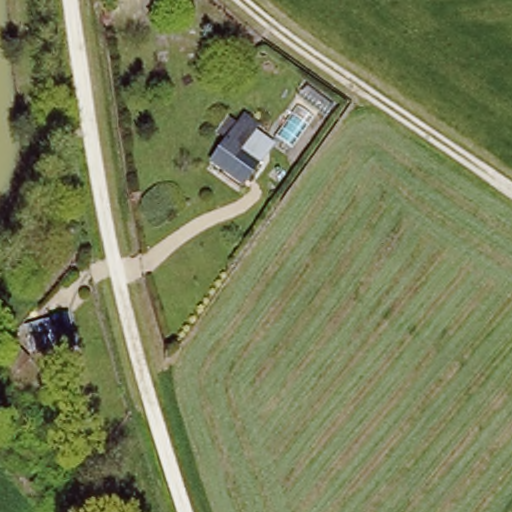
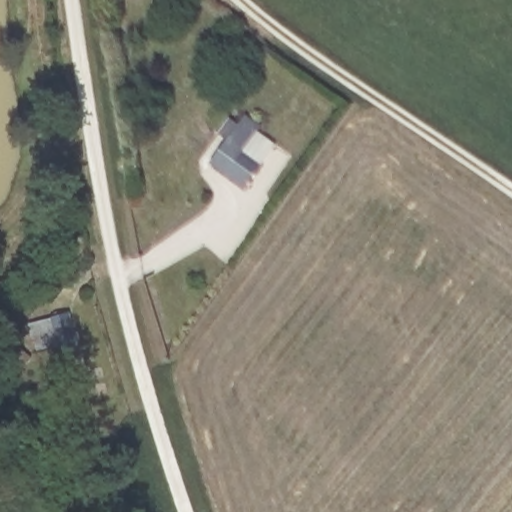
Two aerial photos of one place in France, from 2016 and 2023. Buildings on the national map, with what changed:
unchanged [(264,123),(246,147),(262,159),(244,184),(211,160),(248,112),(264,123)]
unchanged [(68,315),(74,342),(26,353),(20,325),(68,315)]
unchanged [(0,337),(0,330),(3,333),(0,337)]

